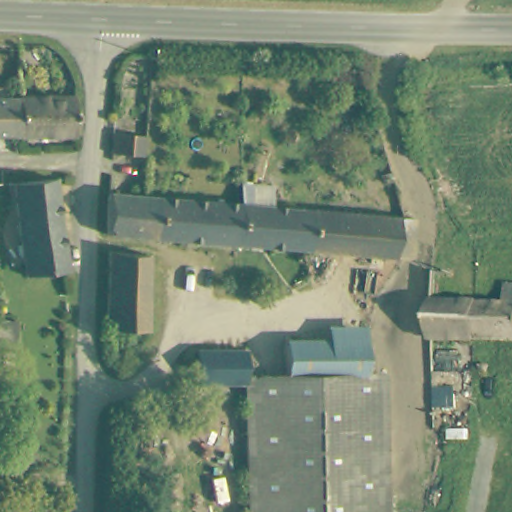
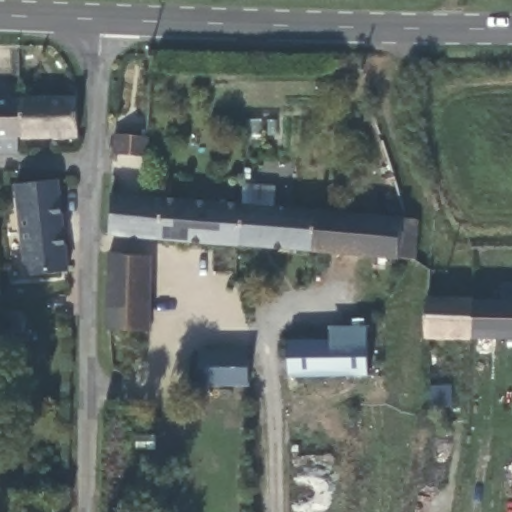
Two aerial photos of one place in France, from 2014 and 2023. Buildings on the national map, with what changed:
unchanged [(23,139),(21,99),(76,98),(78,138),(23,139)]
unchanged [(0,139),(0,99),(21,99),(23,139),(0,139)]
unchanged [(108,154),(109,133),(144,136),(143,157),(108,154)]
unchanged [(15,185),(56,180),(58,196),(60,209),(69,271),(28,276),(15,185)]
unchanged [(326,197),(351,199),(350,218),(425,224),(422,265),(247,250),(247,209),(324,216),(326,197)]
unchanged [(247,250),(114,239),(116,198),(150,201),(247,209),(247,250)]
unchanged [(151,260),(150,335),(108,336),(110,256),(151,260)]
unchanged [(426,341),(431,273),(447,274),(445,304),(469,304),(470,342),(430,341),(426,341)]
unchanged [(502,287),(512,287),(512,343),(470,342),(469,304),(502,304),(502,287)]
unchanged [(333,341),(369,340),(370,377),(334,378),(333,341)]
unchanged [(288,341),(333,341),(334,378),(289,379),(288,341)]
unchanged [(247,381),(248,404),(201,404),(199,351),(248,351),(250,380),(247,381)]
demolished [(289,379),(334,378),(370,377),(389,377),(392,512),(252,512),(248,404),(247,381),(250,380),(289,379)]

